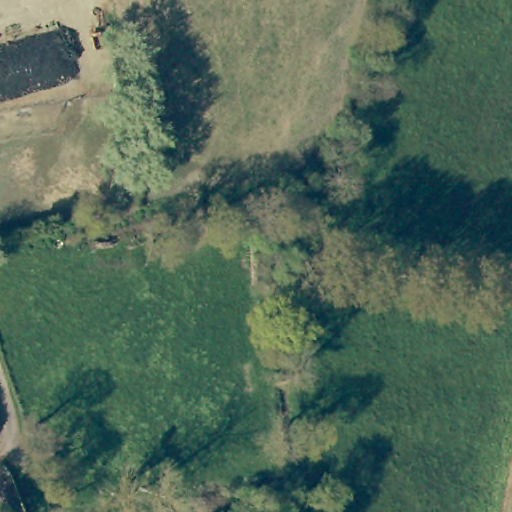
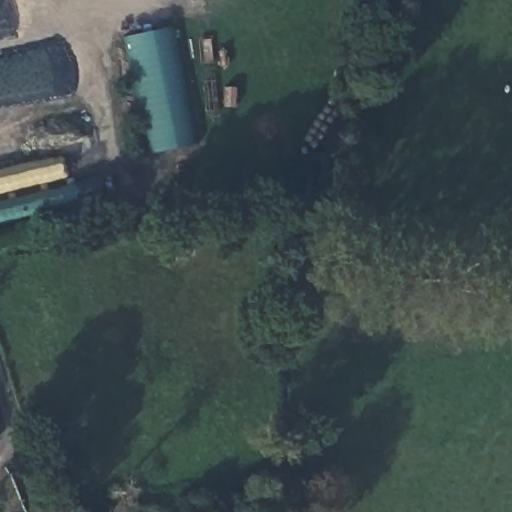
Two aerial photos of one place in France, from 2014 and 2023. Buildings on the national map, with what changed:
new [(197,142),(149,152),(126,37),(175,28),(197,142)]

